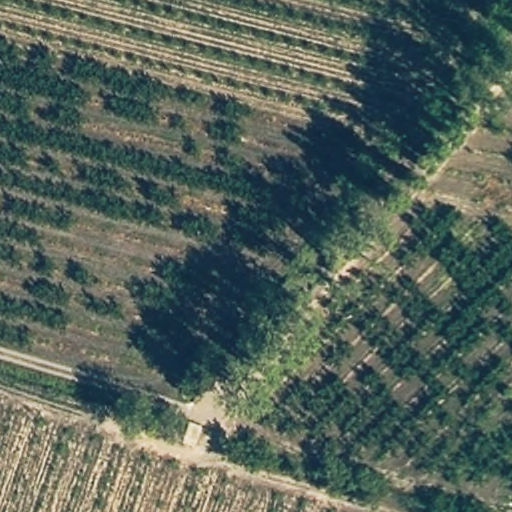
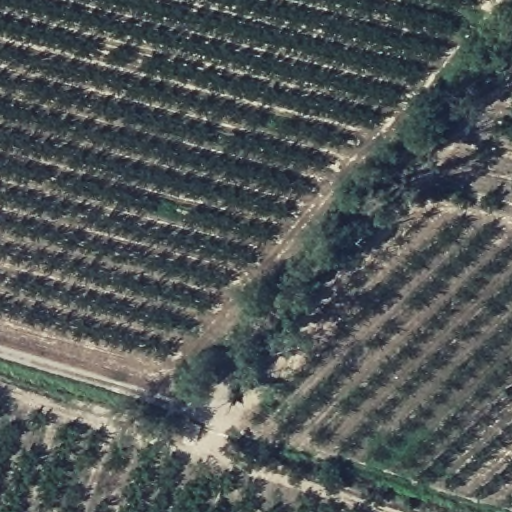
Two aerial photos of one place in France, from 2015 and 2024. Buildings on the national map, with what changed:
unchanged [(210,425),(205,435),(182,428),(186,416),(210,425)]

